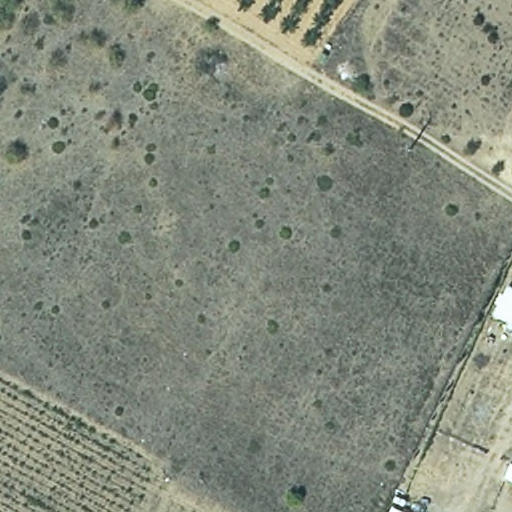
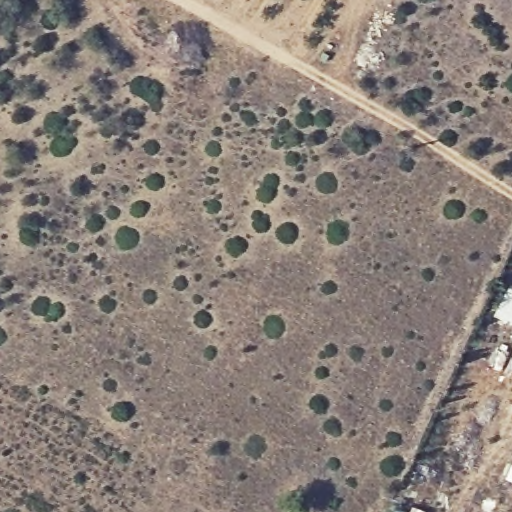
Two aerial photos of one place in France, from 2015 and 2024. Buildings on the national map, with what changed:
unchanged [(404,512),(389,512),(392,506),(404,512)]

